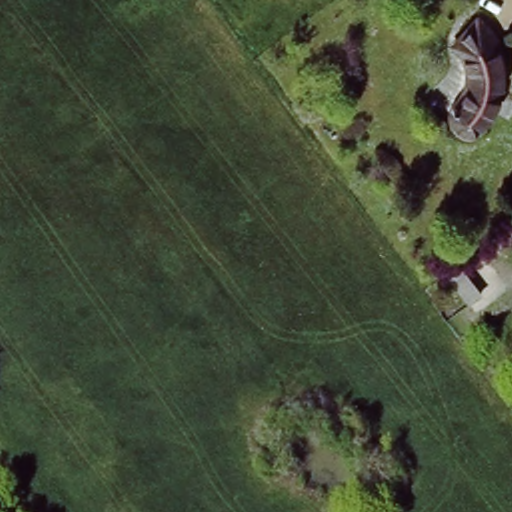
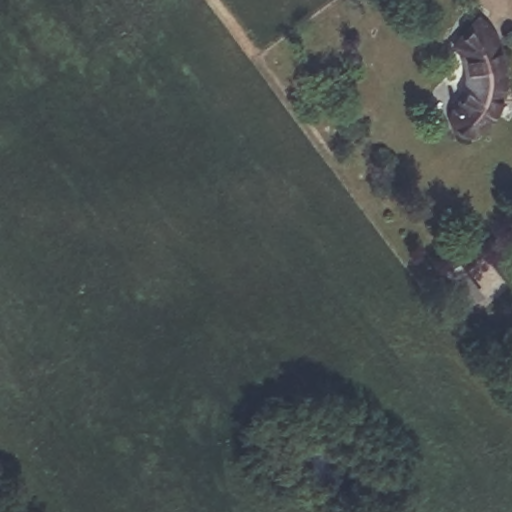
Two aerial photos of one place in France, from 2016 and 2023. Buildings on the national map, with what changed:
unchanged [(501,26),(510,49),(512,59),(512,67),(510,84),(500,110),(492,121),(480,130),(468,133),(460,129),(455,120),(455,113),(460,107),(472,99),(480,85),(483,71),(480,58),(475,46),(501,26)]

